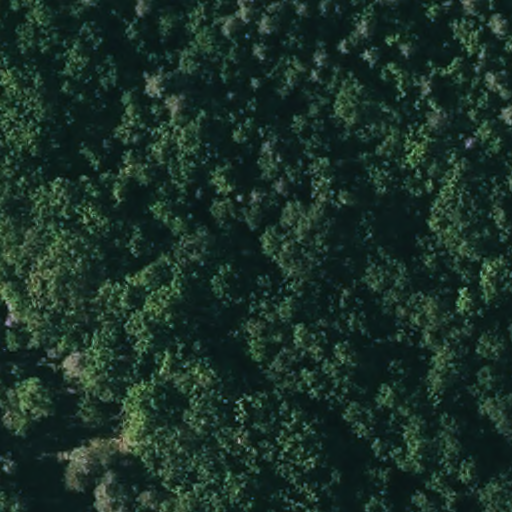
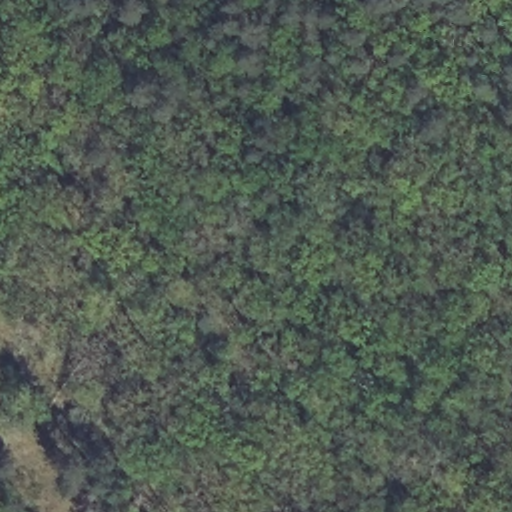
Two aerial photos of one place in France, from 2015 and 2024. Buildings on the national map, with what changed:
[]

